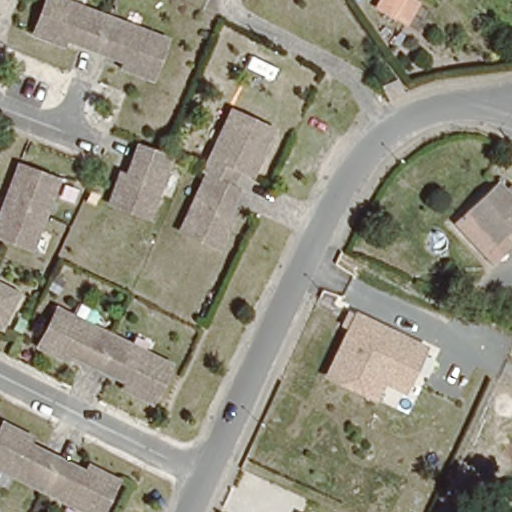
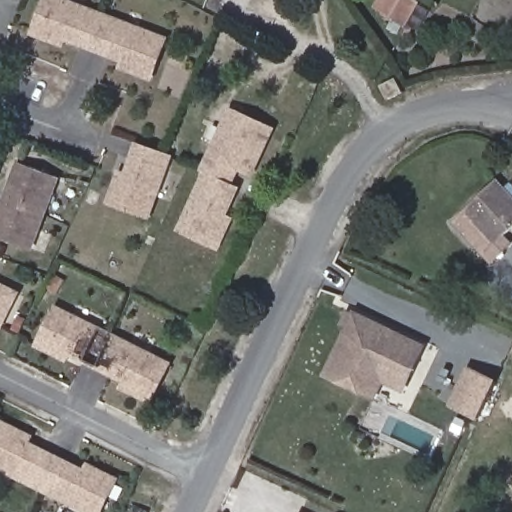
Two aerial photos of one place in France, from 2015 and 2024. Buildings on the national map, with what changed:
unchanged [(141,84),(124,76),(128,69),(48,30),(44,39),(25,30),(39,0),(70,0),(160,44),(141,84)]
unchanged [(234,160),(232,167),(235,169),(230,181),(236,184),(218,225),(224,228),(217,246),(179,230),(204,172),(200,170),(227,109),(269,127),(251,168),(234,160)]
unchanged [(141,217),(106,204),(115,182),(120,184),(135,147),(165,159),(141,217)]
unchanged [(5,185),(13,165),(50,180),(24,249),(0,239),(0,214),(1,215),(13,188),(5,185)]
unchanged [(474,239),(457,215),(471,205),(504,175),(512,183),(512,227),(497,240),(483,251),(474,239)]
unchanged [(0,306),(0,285),(9,289),(0,306)]
unchanged [(53,307),(166,368),(146,406),(132,398),(136,390),(55,350),(52,356),(33,346),(53,307)]
unchanged [(391,379),(383,396),(369,390),(334,374),(358,326),(352,323),(358,310),(432,346),(418,375),(412,389),(391,379)]
new [(478,421),(449,406),(468,365),(499,380),(478,421)]
unchanged [(8,436),(86,475),(90,467),(108,476),(89,512),(80,512),(0,472),(0,423),(11,429),(8,436)]

